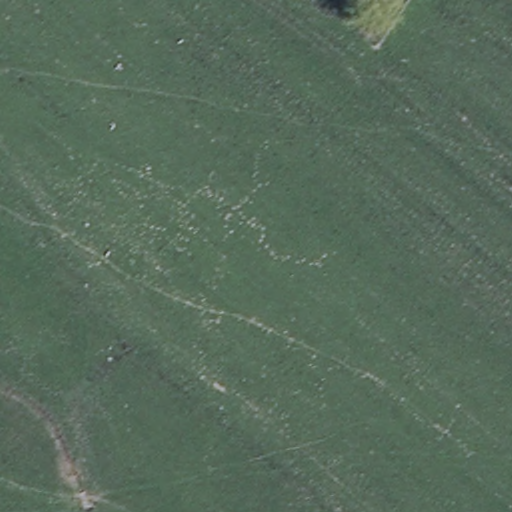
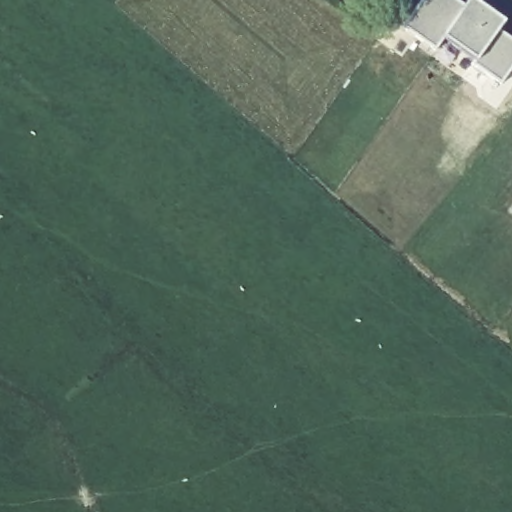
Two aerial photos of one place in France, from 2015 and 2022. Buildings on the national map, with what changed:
new [(468,0),(474,0),(485,8),(492,14),(505,22),(499,30),(512,39),(512,69),(501,85),(471,64),(474,61),(444,39),(435,51),(402,27),(421,0),(456,0),(464,6),(468,0)]

